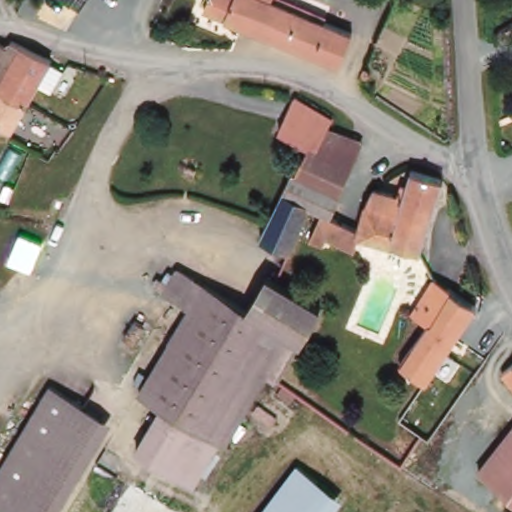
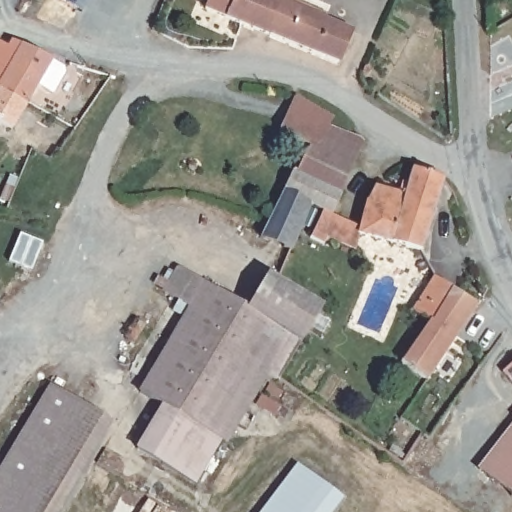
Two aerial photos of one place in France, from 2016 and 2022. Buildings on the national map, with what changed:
unchanged [(79,10),(65,0),(87,0),(79,10)]
unchanged [(340,64),(204,9),(208,0),(278,0),(353,31),(340,64)]
unchanged [(55,92),(41,86),(32,104),(31,106),(10,95),(0,90),(0,42),(13,47),(17,42),(54,60),(52,65),(65,71),(55,92)]
unchanged [(10,95),(31,106),(17,129),(0,117),(0,90),(10,95)]
unchanged [(340,115),(336,124),(333,130),(325,147),(318,144),(318,145),(287,132),(303,97),(340,115)]
unchanged [(284,189),(294,166),(298,168),(298,167),(318,145),(318,144),(325,147),(333,130),(336,124),(370,135),(337,208),(309,200),(284,189)]
unchanged [(400,188),(403,179),(409,180),(414,165),(445,172),(440,187),(425,246),(361,229),(365,202),(376,181),(400,188)]
unchanged [(284,189),(309,200),(290,242),(264,232),(270,220),(281,196),(283,190),(284,189)]
unchanged [(272,380),(229,446),(223,443),(199,483),(134,448),(163,406),(139,392),(189,306),(166,290),(180,266),(248,305),(268,273),(323,306),(277,382),(272,380)]
unchanged [(478,304),(459,337),(425,376),(402,359),(421,331),(428,318),(413,310),(434,274),(478,304)]
unchanged [(512,367),(512,385),(503,375),(512,367)]
unchanged [(115,424),(62,512),(0,512),(0,469),(51,385),(115,424)]
unchanged [(512,495),(480,466),(512,428),(512,495)]
unchanged [(345,502),(337,512),(262,512),(299,463),(345,502)]

